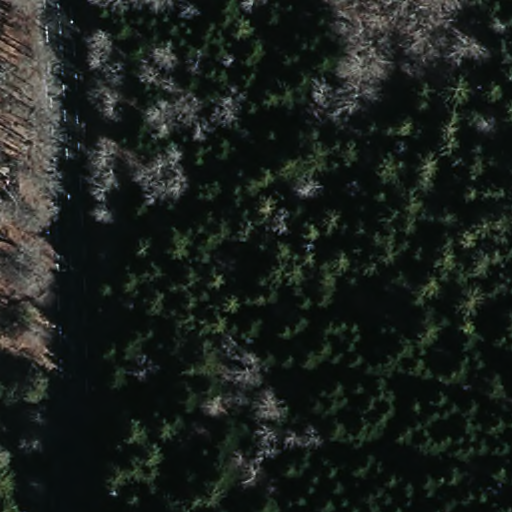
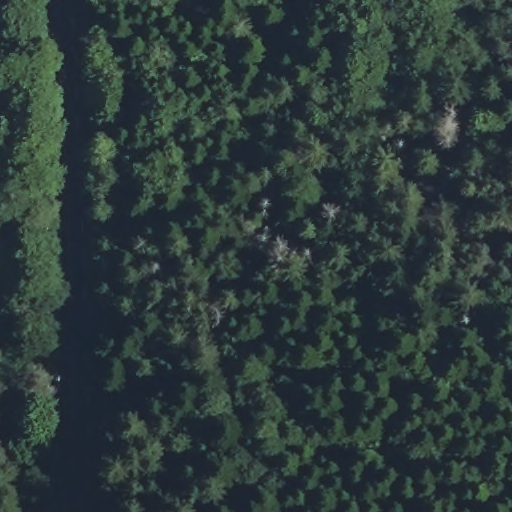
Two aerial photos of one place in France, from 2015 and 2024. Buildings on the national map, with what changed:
unchanged [(0,208),(0,173),(8,172),(10,207),(0,208)]

